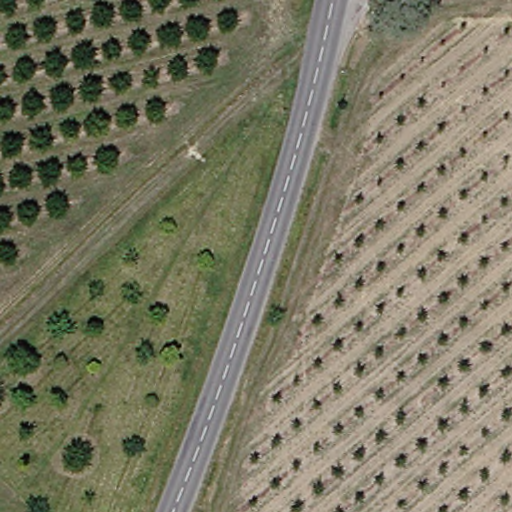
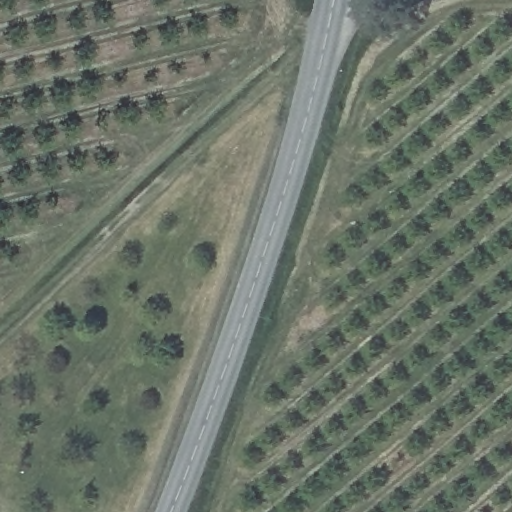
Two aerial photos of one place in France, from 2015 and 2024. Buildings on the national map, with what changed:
[]

